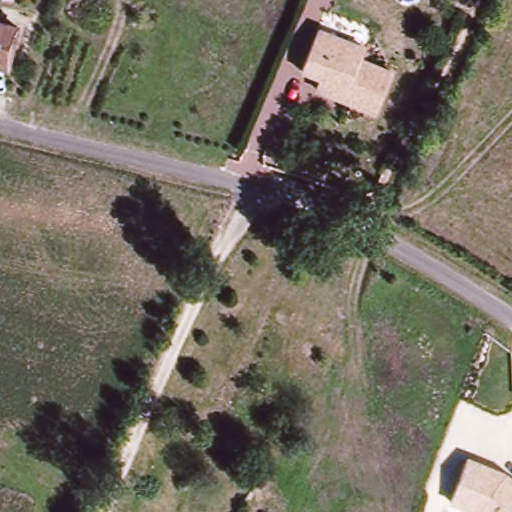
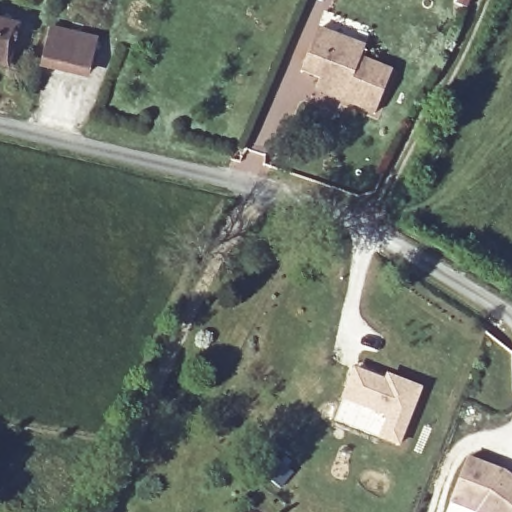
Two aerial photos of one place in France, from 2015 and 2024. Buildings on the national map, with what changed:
new [(98,39),(88,80),(39,69),(49,26),(98,39)]
unchanged [(6,30),(23,33),(13,74),(0,70),(0,28),(6,30)]
unchanged [(300,74),(317,32),(363,51),(358,62),(390,75),(373,115),(340,102),(314,91),(318,81),(300,74)]
new [(354,365),(383,377),(386,372),(424,386),(400,446),(378,437),(386,417),(341,398),(354,365)]
new [(341,398),(386,417),(378,437),(334,419),(341,398)]
unchanged [(449,500),(467,457),(504,472),(512,479),(512,512),(477,512),(475,510),(449,500)]

